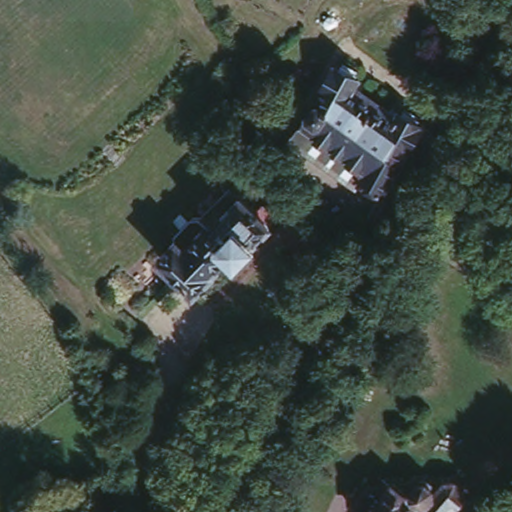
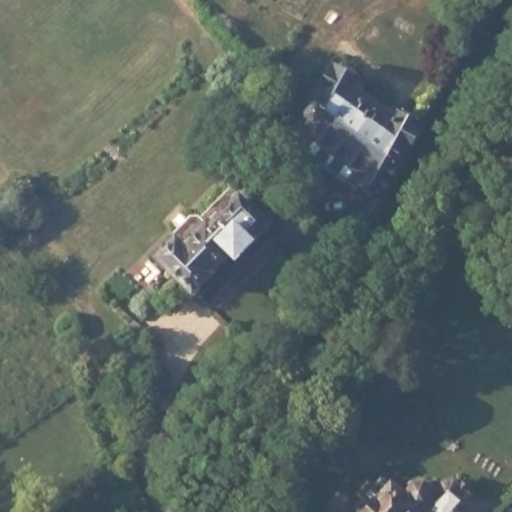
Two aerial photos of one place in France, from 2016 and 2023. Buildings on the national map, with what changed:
unchanged [(358,174),(365,164),(298,116),(315,92),(335,58),(355,71),(362,75),(358,82),(390,105),(391,102),(397,105),(419,117),(380,186),(358,174)]
unchanged [(355,181),(288,131),(298,116),(365,164),(358,174),(355,181)]
unchanged [(212,219),(235,196),(250,210),(255,205),(269,217),(263,222),(259,227),(267,236),(245,259),(231,246),(207,271),(210,273),(193,291),(157,257),(175,238),(176,230),(177,228),(169,219),(177,211),(186,219),(188,217),(196,216),(204,222),(209,227),(215,221),(212,219)]
unchanged [(357,499),(383,473),(392,482),(394,480),(408,493),(405,489),(405,488),(405,487),(405,485),(405,481),(406,477),(406,476),(407,476),(407,475),(408,473),(409,473),(409,472),(410,472),(411,472),(411,471),(412,471),(413,471),(413,470),(414,470),(415,470),(416,470),(416,469),(417,469),(418,469),(419,469),(420,469),(421,470),(422,470),(423,470),(426,471),(426,472),(427,472),(428,473),(429,473),(429,474),(430,475),(430,476),(431,477),(431,478),(431,479),(432,480),(432,481),(432,482),(432,483),(432,484),(432,485),(432,486),(432,487),(431,488),(444,474),(452,473),(453,475),(458,469),(472,481),(467,487),(469,488),(470,498),(456,512),(362,512),(362,502),(357,499)]

